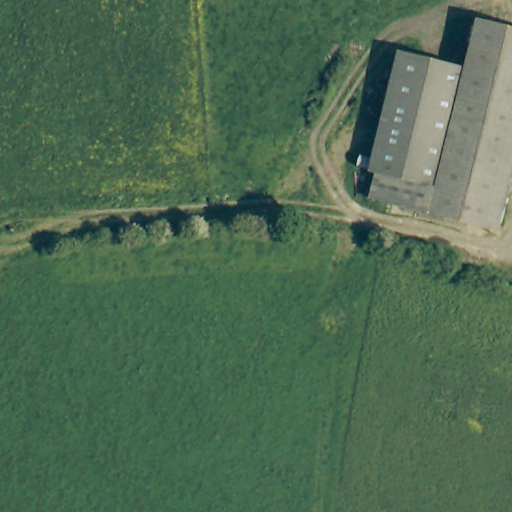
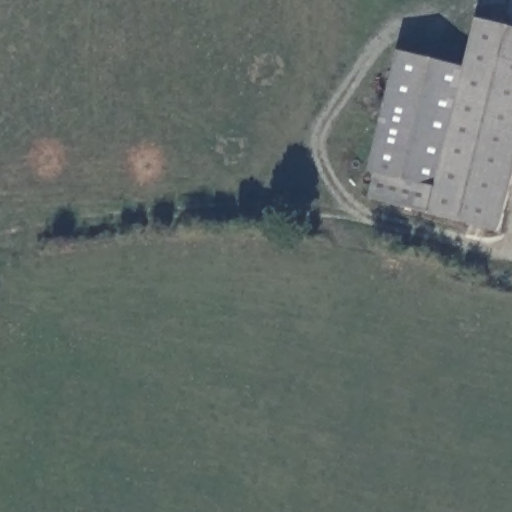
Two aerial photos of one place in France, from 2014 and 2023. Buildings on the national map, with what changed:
unchanged [(477,74),(489,25),(512,30),(512,158),(493,229),(478,225),(484,199),(448,190),(477,74)]
unchanged [(410,57),(477,74),(448,190),(388,175),(381,173),(410,57)]
unchanged [(382,200),(388,175),(448,190),(484,199),(478,225),(382,200)]

